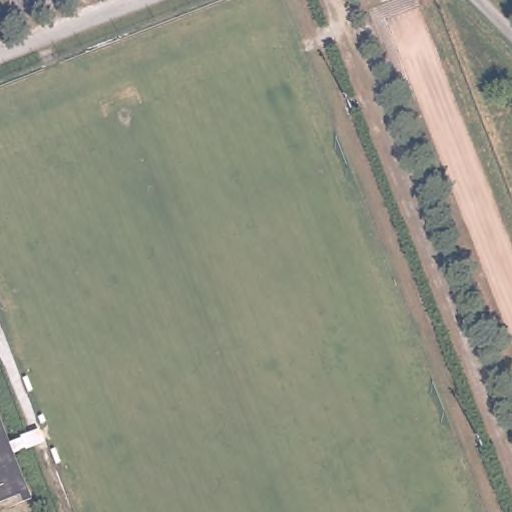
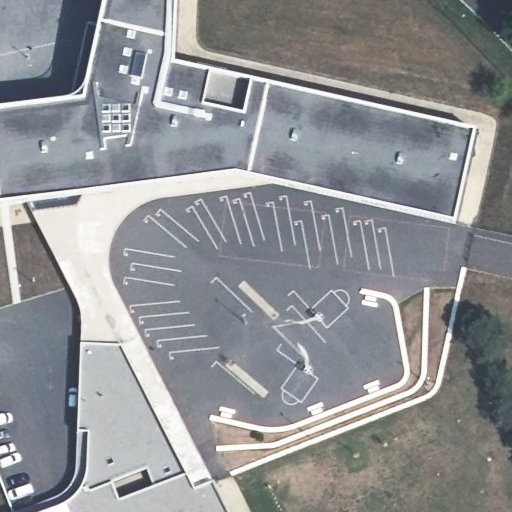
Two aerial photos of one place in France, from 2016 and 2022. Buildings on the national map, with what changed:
new [(56,499),(70,488),(76,475),(81,325),(80,312),(73,295),(26,203),(0,207),(0,110),(65,101),(78,95),(84,86),(103,0),(175,0),(172,64),(476,130),(454,224),(274,185),(210,194),(154,202),(135,209),(119,226),(110,247),(110,269),(116,289),(216,482),(231,512),(21,512),(56,499)]
demolished [(0,422),(31,500),(19,504),(0,511),(0,510),(0,422)]

